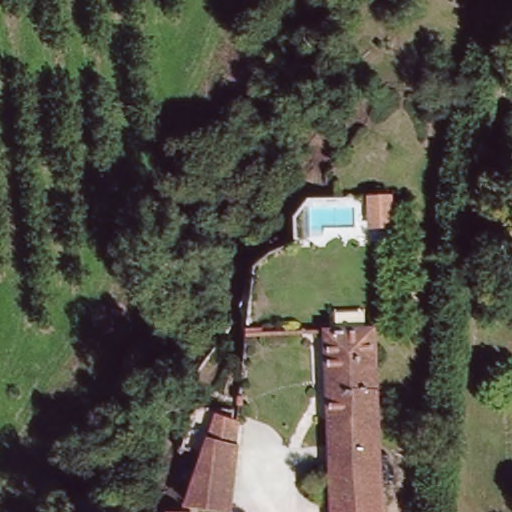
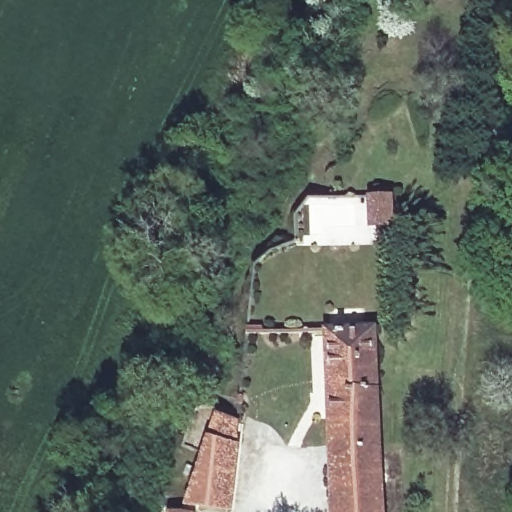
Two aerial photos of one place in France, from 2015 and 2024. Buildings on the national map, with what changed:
unchanged [(394,197),(394,225),(373,225),(373,196),(394,197)]
unchanged [(383,512),(332,512),(325,335),(379,335),(383,512)]
unchanged [(203,428),(222,430),(247,434),(236,512),(193,512),(203,428)]

